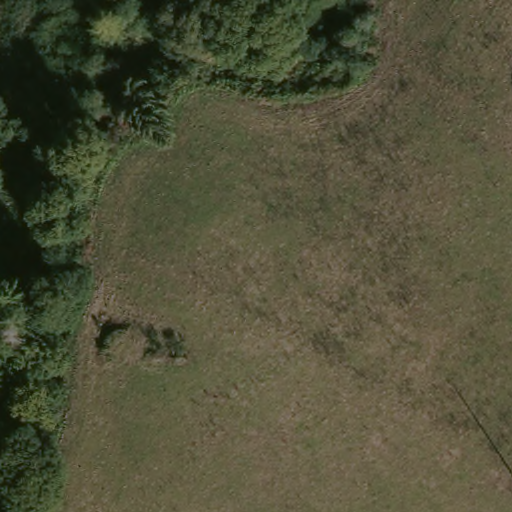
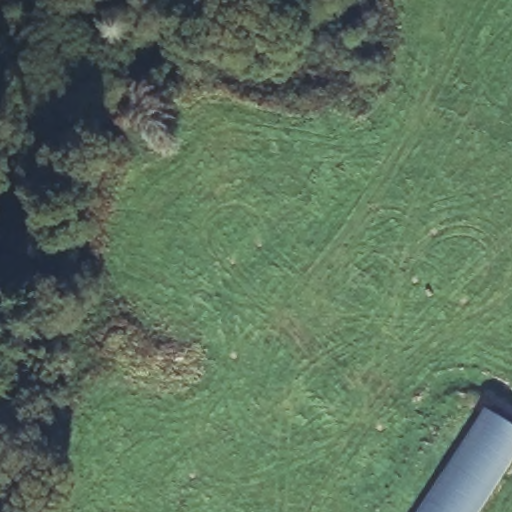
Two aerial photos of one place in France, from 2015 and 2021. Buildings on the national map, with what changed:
new [(482,411),(512,430),(512,458),(477,512),(417,512),(482,411)]

